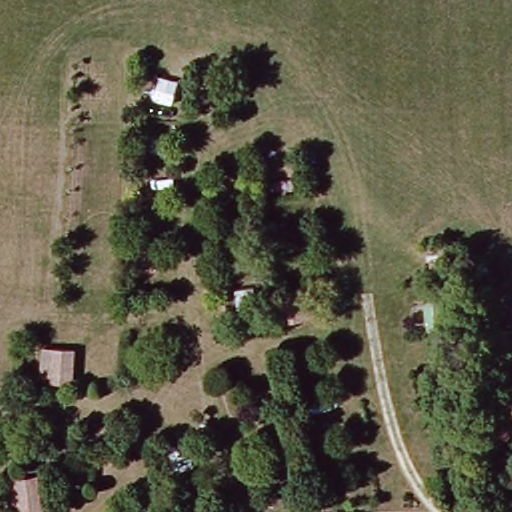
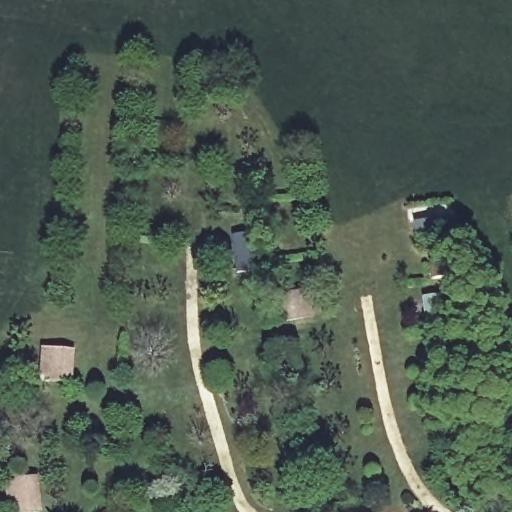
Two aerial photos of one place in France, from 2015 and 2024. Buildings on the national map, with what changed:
unchanged [(73,349),(72,383),(38,382),(40,347),(73,349)]
unchanged [(2,483),(35,477),(42,512),(8,512),(2,483)]

